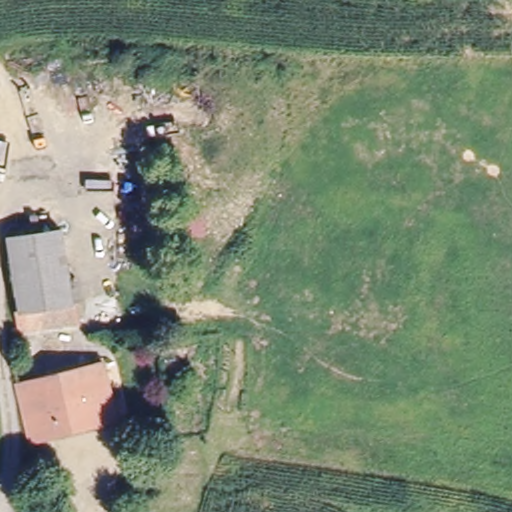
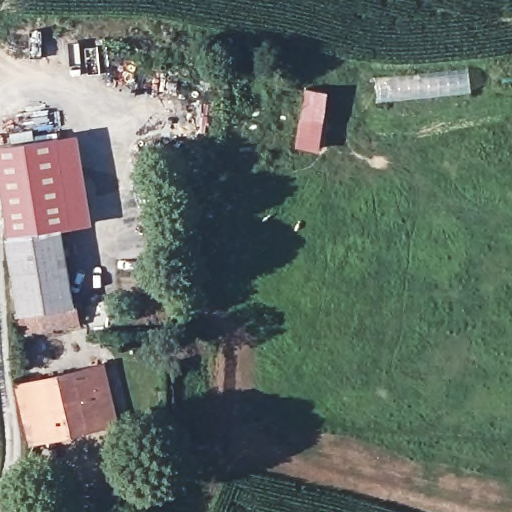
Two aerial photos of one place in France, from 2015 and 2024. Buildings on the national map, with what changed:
new [(64,227),(65,230),(61,231),(9,240),(0,180),(0,144),(80,132),(94,222),(64,227)]
unchanged [(26,331),(9,240),(61,231),(78,321),(26,331)]
unchanged [(25,383),(19,363),(44,358),(49,378),(91,367),(104,363),(119,414),(39,436),(25,385),(25,383)]

